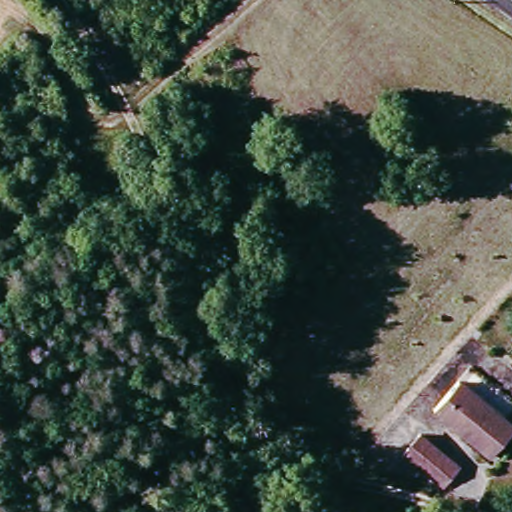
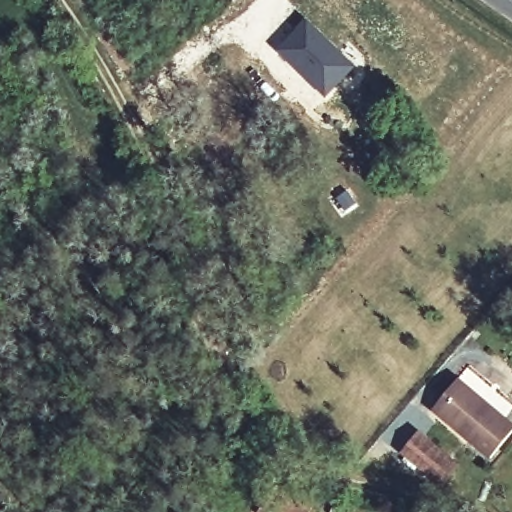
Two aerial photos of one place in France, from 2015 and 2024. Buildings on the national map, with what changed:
new [(305,16),(357,66),(325,100),(273,49),(305,16)]
unchanged [(495,456),(438,413),(460,384),(512,424),(512,433),(495,456)]
unchanged [(437,485),(403,460),(417,441),(452,465),(437,485)]

